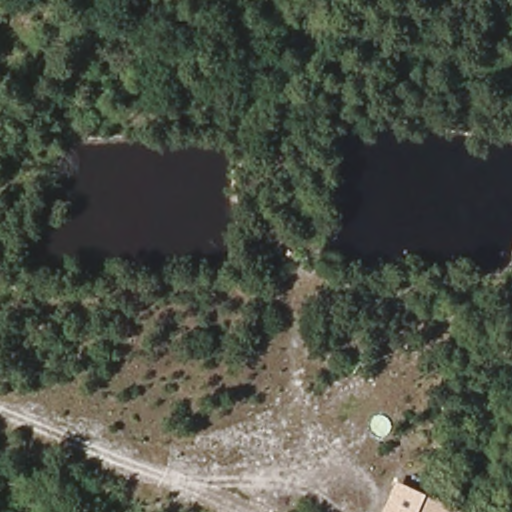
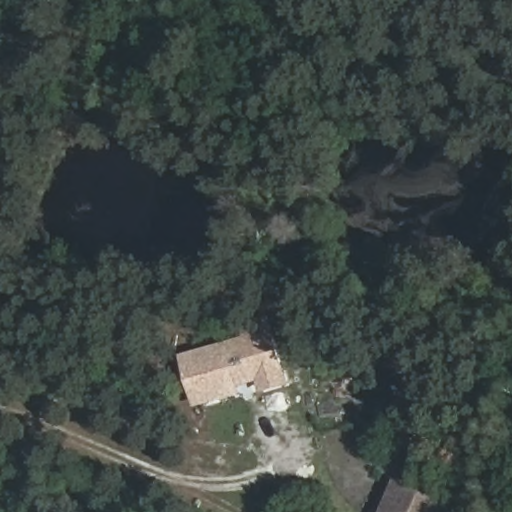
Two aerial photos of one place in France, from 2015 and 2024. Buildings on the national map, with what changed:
new [(263,394),(258,382),(240,387),(243,394),(197,407),(180,356),(244,338),(241,326),(272,317),(291,385),(263,394)]
unchanged [(467,512),(381,512),(395,480),(468,512),(467,512)]

